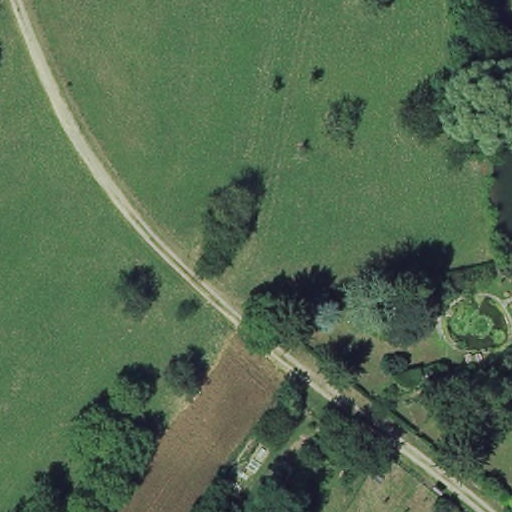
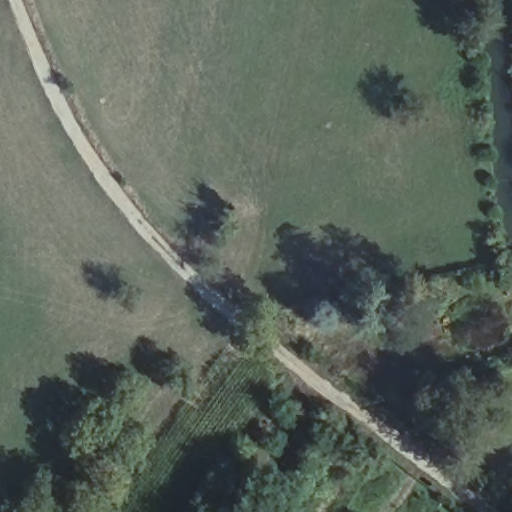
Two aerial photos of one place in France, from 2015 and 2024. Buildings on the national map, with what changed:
unchanged [(501,390),(475,401),(467,383),(494,372),(501,390)]

